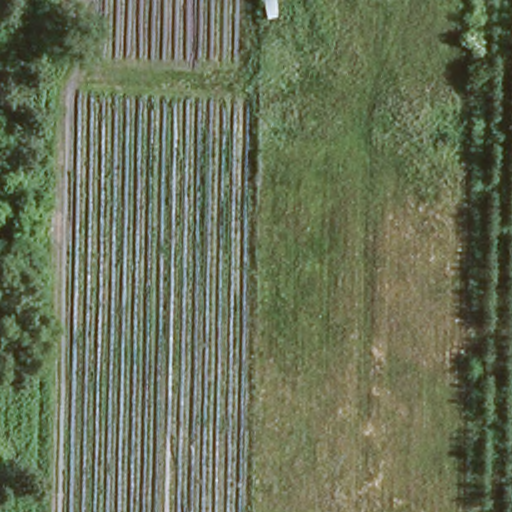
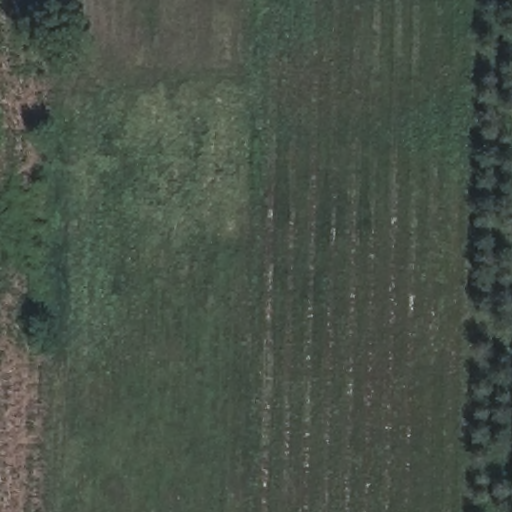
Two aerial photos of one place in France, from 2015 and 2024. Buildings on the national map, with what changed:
unchanged [(461,34),(474,1),(495,10),(483,42),(473,40),(461,34)]

